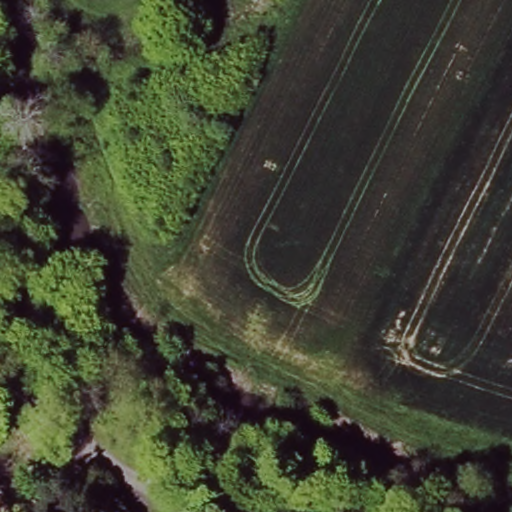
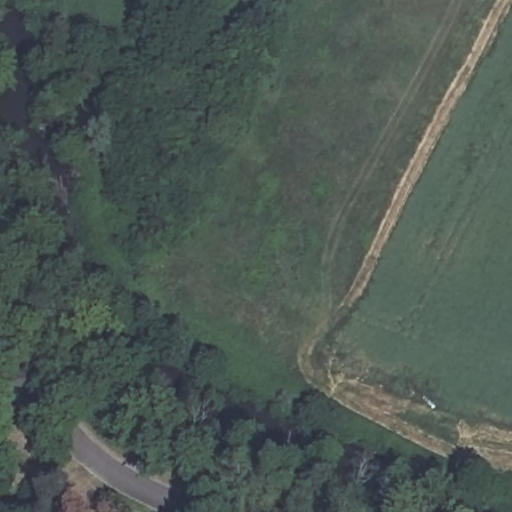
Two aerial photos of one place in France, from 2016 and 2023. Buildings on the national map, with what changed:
[]

